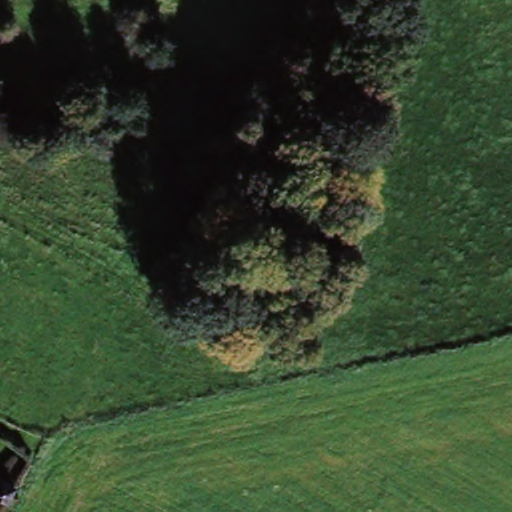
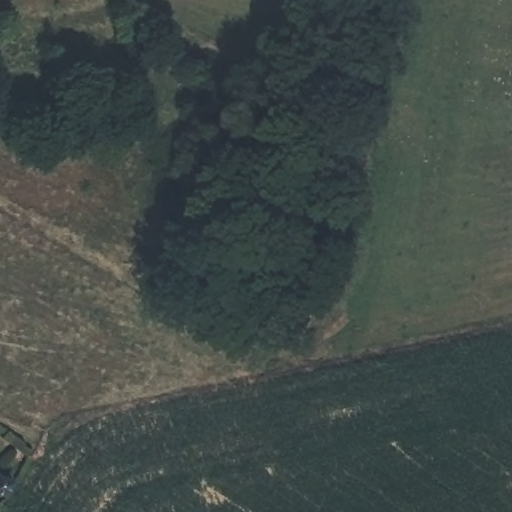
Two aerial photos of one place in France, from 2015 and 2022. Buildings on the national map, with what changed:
[]

